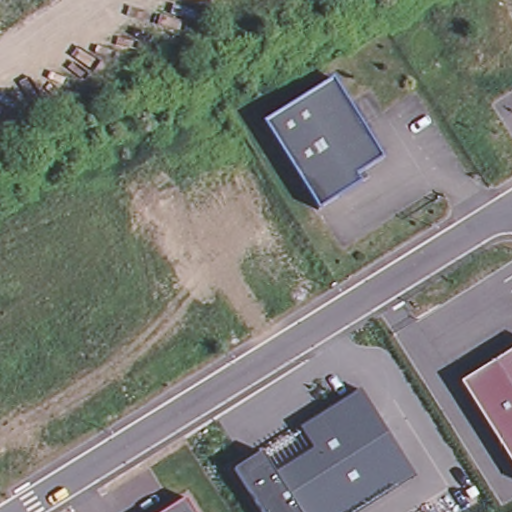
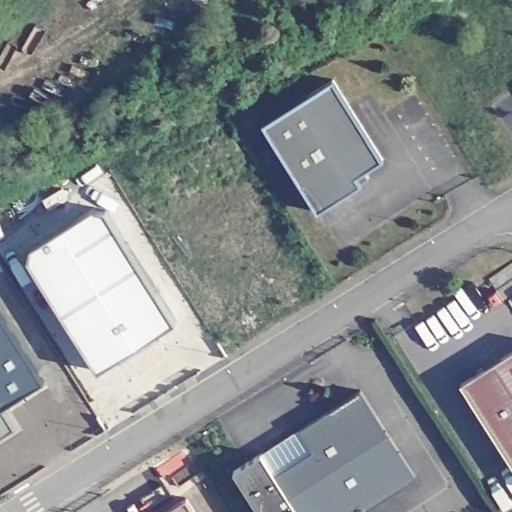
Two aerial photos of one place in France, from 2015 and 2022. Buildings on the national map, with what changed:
unchanged [(362,184),(319,212),(264,124),(334,80),(384,160),(365,171),(370,179),(362,184)]
new [(28,259),(33,247),(93,209),(107,212),(175,322),(98,372),(28,259)]
new [(45,392),(2,416),(10,432),(0,439),(0,319),(45,392)]
unchanged [(510,448),(467,378),(512,350),(512,470),(502,454),(510,448)]
unchanged [(415,474),(353,512),(261,512),(232,465),(258,448),(262,455),(361,390),(415,474)]
unchanged [(185,498),(194,512),(162,512),(185,498)]

